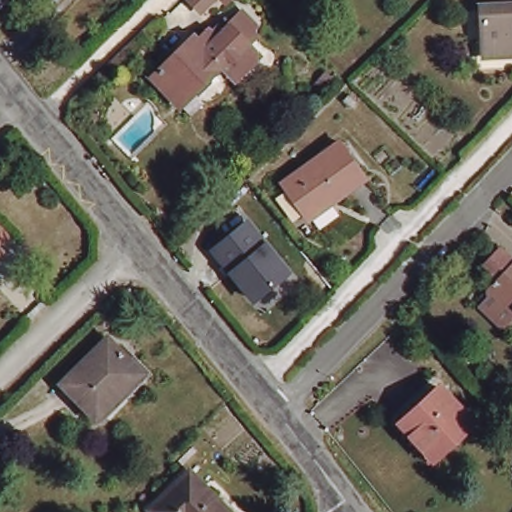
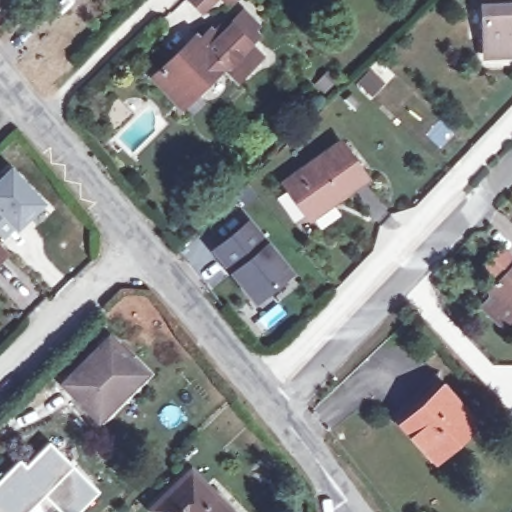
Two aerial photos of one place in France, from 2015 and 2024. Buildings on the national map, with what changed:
unchanged [(481,0),(512,0),(512,63),(484,65),(481,0)]
unchanged [(227,29),(231,24),(235,29),(248,15),(262,29),(255,36),(260,41),(254,47),(267,59),(236,89),(222,74),(202,54),(198,50),(198,49),(210,38),(214,42),(227,29)]
unchanged [(181,114),(153,85),(195,45),(198,49),(198,50),(202,54),(222,74),(181,114)]
unchanged [(311,224),(287,192),(345,150),(371,187),(342,208),(315,229),(311,224)]
new [(10,166),(43,203),(15,231),(12,229),(3,238),(0,234),(0,175),(10,166)]
unchanged [(250,220),(265,241),(293,279),(255,306),(228,272),(211,249),(250,220)]
unchanged [(2,244),(0,247),(0,242),(2,244)]
unchanged [(495,284),(482,272),(500,253),(512,265),(512,319),(486,294),(495,284)]
unchanged [(62,382),(108,337),(130,359),(142,373),(135,380),(97,418),(62,382)]
unchanged [(398,425),(402,422),(441,386),(473,422),(435,457),(430,461),(398,425)]
new [(19,458),(25,464),(49,439),(73,464),(42,496),(26,512),(0,512),(0,477),(19,458)]
new [(73,464),(100,491),(79,512),(59,512),(42,496),(73,464)]
unchanged [(187,484),(195,476),(213,494),(231,512),(158,512),(187,484)]

